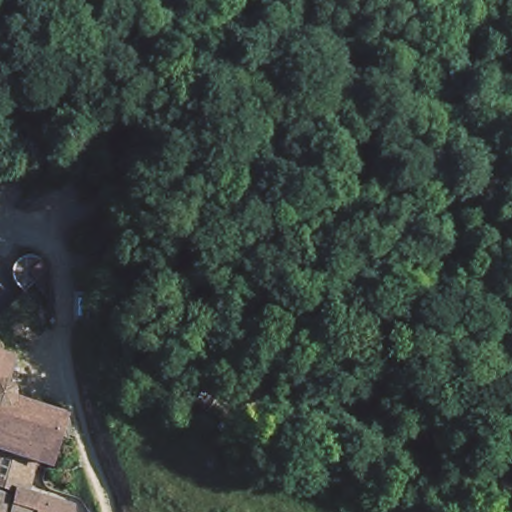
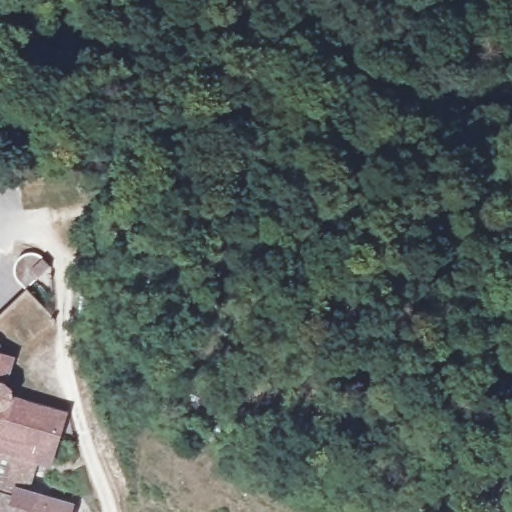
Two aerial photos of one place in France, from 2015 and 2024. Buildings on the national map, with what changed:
unchanged [(15,248),(24,241),(35,241),(43,243),(48,247),(36,258),(41,264),(23,283),(15,277),(10,268),(10,256),(15,248)]
unchanged [(20,389),(19,396),(66,410),(53,463),(38,460),(28,494),(3,475),(0,473),(0,307),(23,283),(47,305),(18,335),(5,346),(3,355),(18,359),(14,379),(17,381),(19,385),(20,389)]
unchanged [(28,494),(76,507),(75,512),(0,512),(0,473),(3,475),(28,494)]

